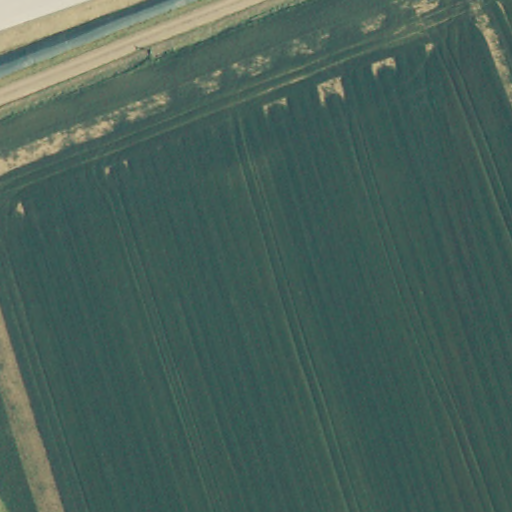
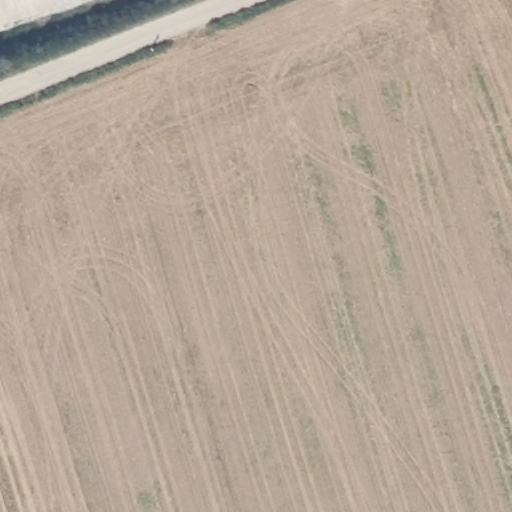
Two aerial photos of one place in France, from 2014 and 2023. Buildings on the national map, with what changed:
unchanged [(0,26),(0,0),(77,0),(0,26)]

